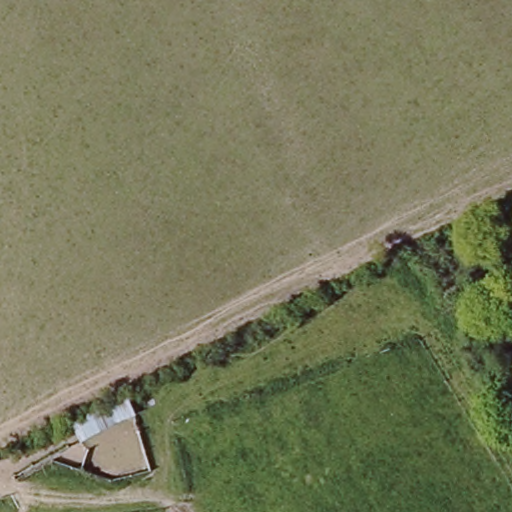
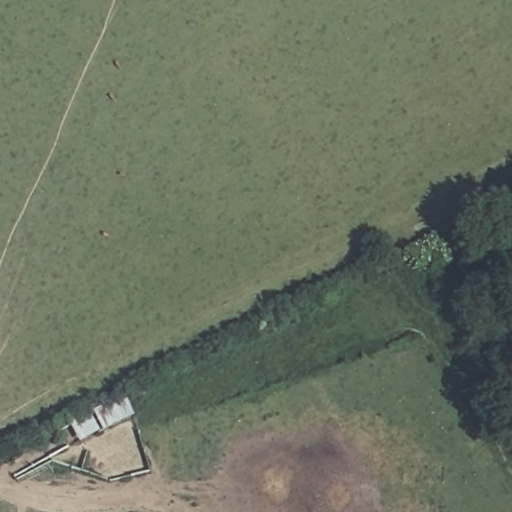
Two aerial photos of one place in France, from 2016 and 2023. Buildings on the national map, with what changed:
unchanged [(69,423),(124,395),(136,415),(79,444),(69,423)]

